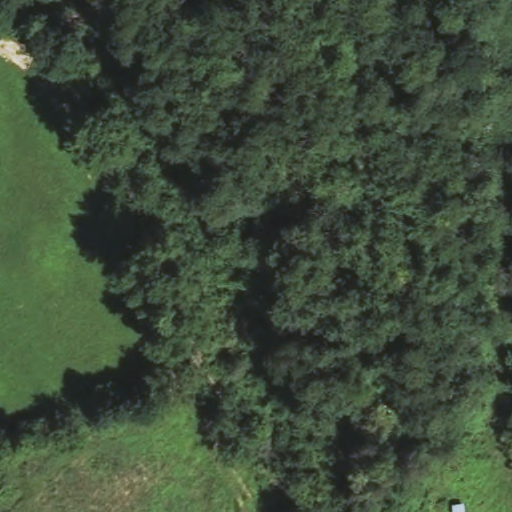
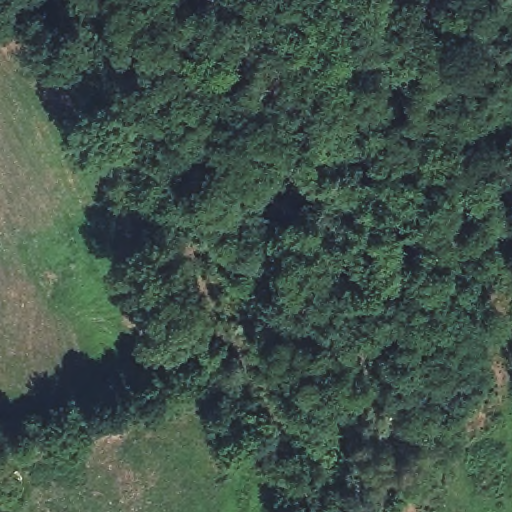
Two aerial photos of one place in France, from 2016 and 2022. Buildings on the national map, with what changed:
unchanged [(447,421),(459,431),(471,440),(448,468),(423,450),(447,421)]

